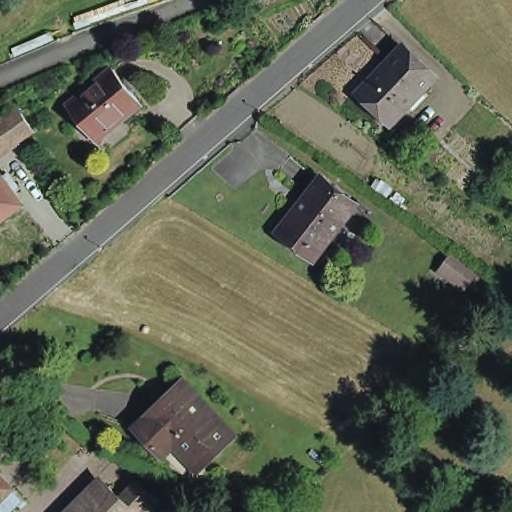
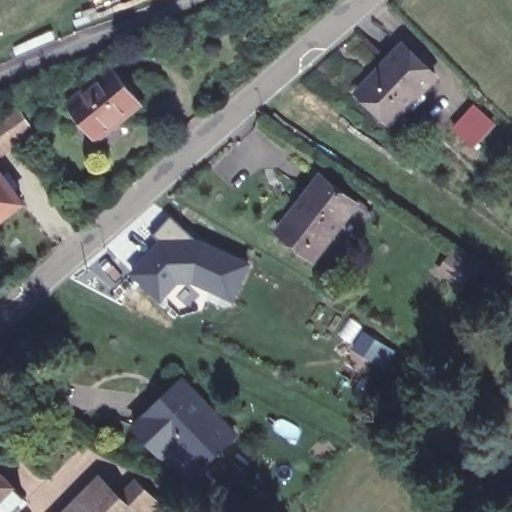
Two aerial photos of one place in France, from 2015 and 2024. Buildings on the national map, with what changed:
unchanged [(402,44),(434,75),(389,122),(357,91),(402,44)]
unchanged [(94,143),(65,106),(110,70),(139,107),(94,143)]
unchanged [(21,111),(38,135),(21,146),(7,156),(0,161),(0,126),(5,122),(21,111)]
unchanged [(0,176),(1,175),(6,181),(11,177),(18,187),(14,190),(26,206),(0,227),(0,176)]
unchanged [(297,207),(295,205),(304,195),(307,196),(324,175),(359,204),(321,251),(316,257),(279,229),(284,222),(297,207)]
new [(238,300),(199,283),(184,284),(166,303),(134,274),(164,241),(206,238),(253,261),(238,300)]
unchanged [(462,285),(441,270),(452,255),(473,270),(462,285)]
unchanged [(202,466),(176,440),(163,455),(135,426),(163,397),(181,380),(193,392),(234,433),(202,466)]
unchanged [(8,512),(0,512),(0,475),(23,497),(8,512)]
unchanged [(118,497),(133,481),(158,505),(152,512),(133,512),(132,511),(131,512),(79,512),(105,485),(118,497)]

